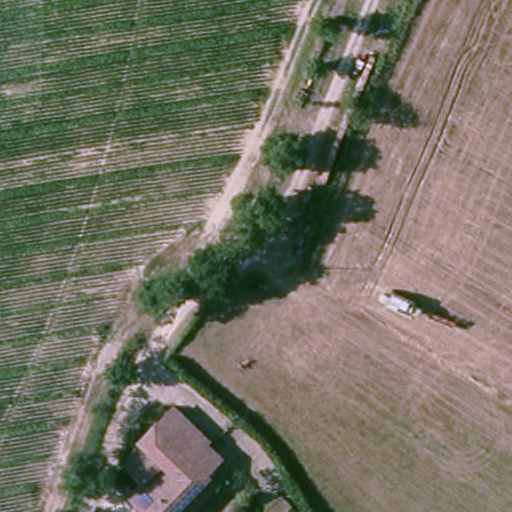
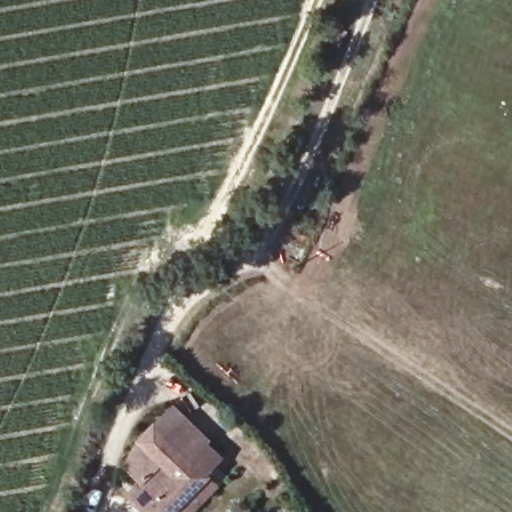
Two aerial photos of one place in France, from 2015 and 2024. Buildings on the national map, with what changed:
unchanged [(196,512),(186,512),(179,505),(171,512),(155,512),(133,490),(149,472),(132,455),(182,406),(212,437),(216,440),(200,460),(211,472),(223,486),(210,499),(196,512)]

